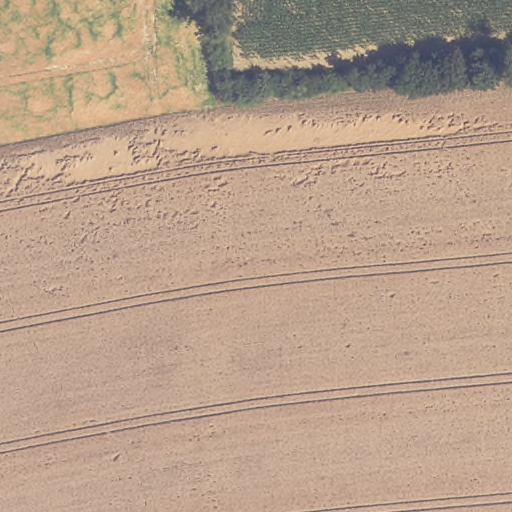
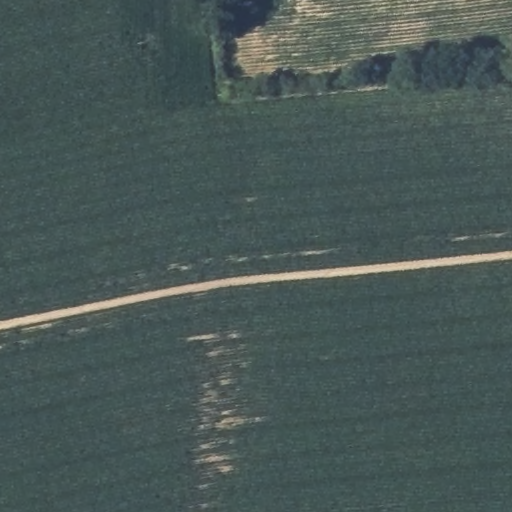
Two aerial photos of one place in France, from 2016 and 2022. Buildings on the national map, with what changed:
[]

